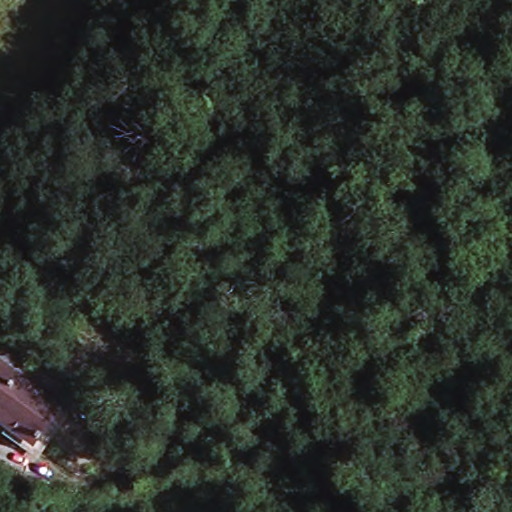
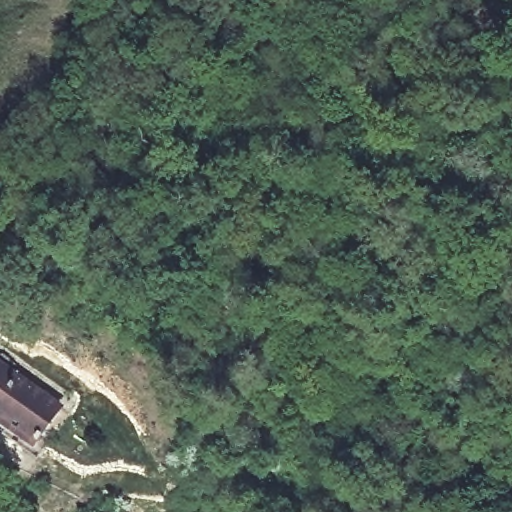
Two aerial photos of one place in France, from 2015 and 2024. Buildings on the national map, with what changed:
unchanged [(37,449),(0,423),(0,369),(63,413),(37,449)]

